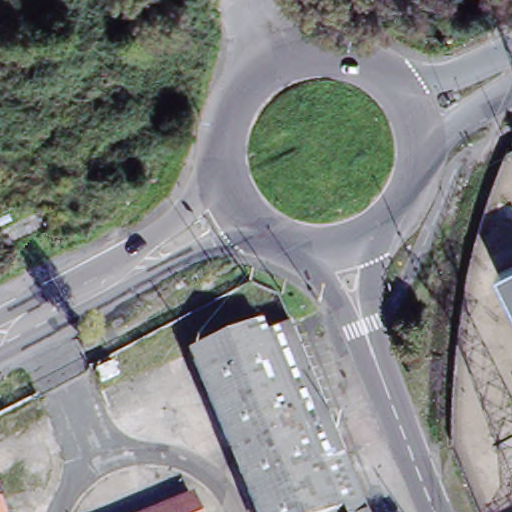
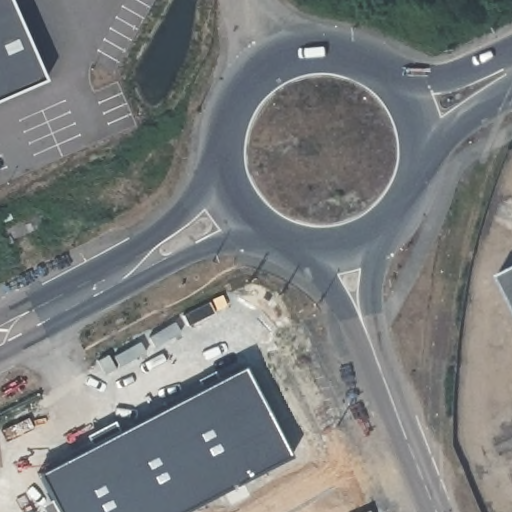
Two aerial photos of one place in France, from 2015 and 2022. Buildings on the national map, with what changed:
new [(45,82),(0,101),(0,0),(10,0),(45,82)]
unchanged [(512,217),(500,214),(503,202),(512,205),(512,217)]
unchanged [(512,265),(512,294),(500,271),(512,265)]
demolished [(335,510),(335,512),(258,512),(192,349),(263,320),(269,331),(275,342),(295,334),(301,349),(363,497),(343,506),(335,510)]
new [(296,457),(188,512),(65,512),(49,477),(250,370),(296,457)]
demolished [(201,512),(154,512),(194,496),(201,512)]
demolished [(6,512),(0,512),(0,498),(6,512)]

